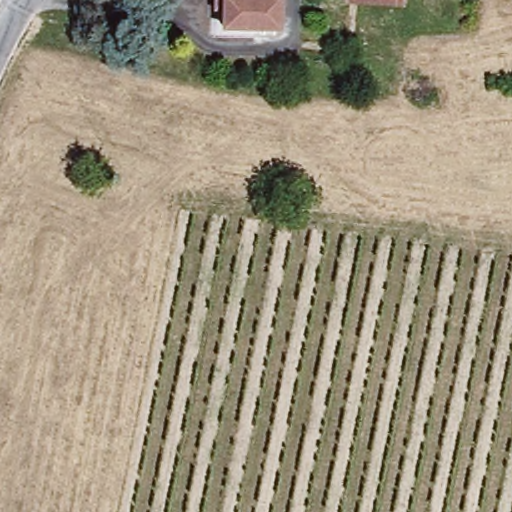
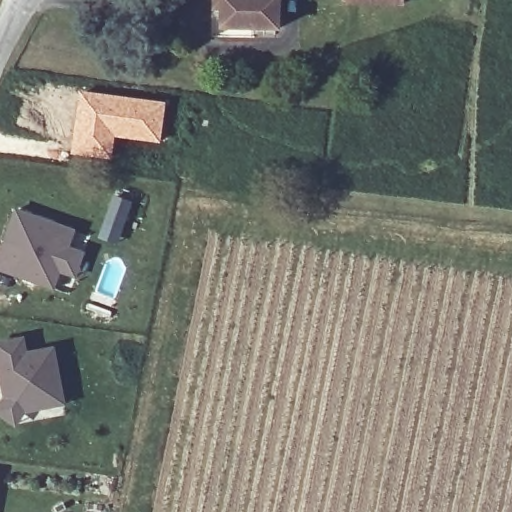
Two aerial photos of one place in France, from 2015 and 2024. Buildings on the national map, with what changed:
unchanged [(217,5),(217,0),(279,0),(279,21),(227,22),(227,5),(217,5)]
unchanged [(347,2),(346,0),(379,0),(347,2)]
new [(79,90),(167,101),(162,144),(117,138),(113,161),(70,155),(79,90)]
new [(113,194),(133,201),(119,246),(97,239),(113,194)]
new [(75,276),(59,269),(52,286),(0,263),(0,252),(21,205),(77,230),(70,246),(85,253),(75,276)]
new [(30,352),(53,346),(67,405),(29,413),(17,428),(0,417),(0,401),(3,396),(0,381),(0,342),(26,336),(30,352)]

